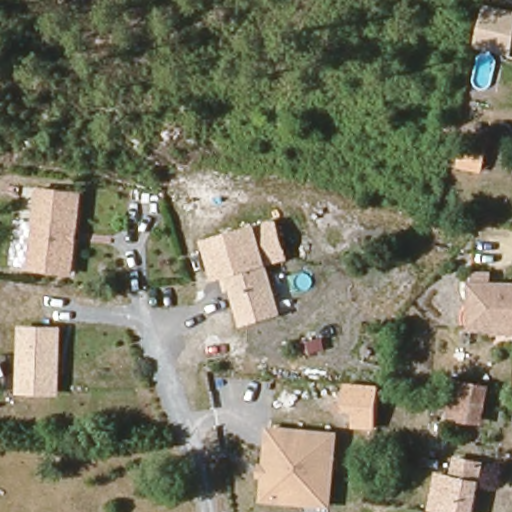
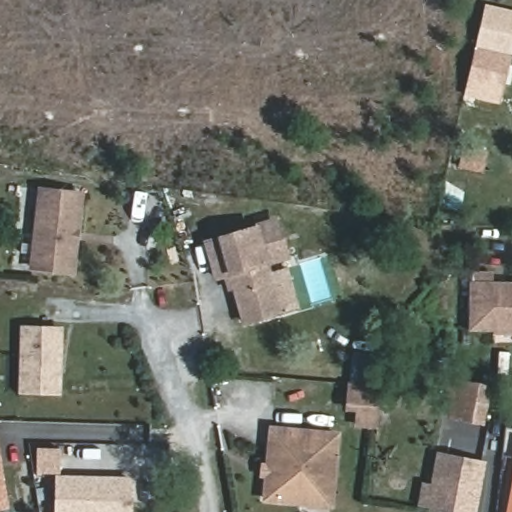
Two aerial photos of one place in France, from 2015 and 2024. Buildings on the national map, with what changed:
unchanged [(481,4),(512,10),(512,55),(471,47),(481,4)]
new [(512,55),(499,104),(464,95),(476,48),(512,55)]
unchanged [(483,174),(457,169),(462,143),(488,148),(483,174)]
unchanged [(74,272),(35,267),(40,221),(43,189),(83,194),(74,272)]
unchanged [(10,264),(15,219),(40,221),(35,267),(10,264)]
unchanged [(271,265),(283,314),(242,327),(227,277),(214,280),(203,241),(278,220),(291,260),(271,265)]
unchanged [(512,281),(512,332),(467,332),(467,281),(512,281)]
unchanged [(60,390),(24,391),(22,328),(59,327),(60,390)]
unchanged [(483,424),(447,416),(453,379),(491,384),(483,424)]
new [(351,383),(383,384),(381,426),(362,425),(362,411),(349,409),(351,383)]
unchanged [(259,502),(262,479),(257,479),(258,459),(263,460),(267,426),(341,431),(333,508),(259,502)]
new [(133,512),(55,512),(56,475),(38,475),(39,449),(60,449),(61,475),(132,477),(132,488),(127,488),(127,500),(133,500),(133,512)]
new [(10,508),(0,510),(0,454),(10,508)]
unchanged [(485,467),(482,486),(474,512),(441,512),(435,511),(447,460),(485,467)]
new [(512,512),(505,512),(512,478),(512,512)]

